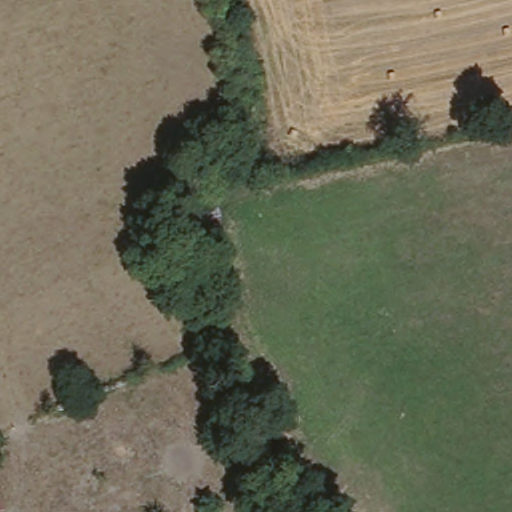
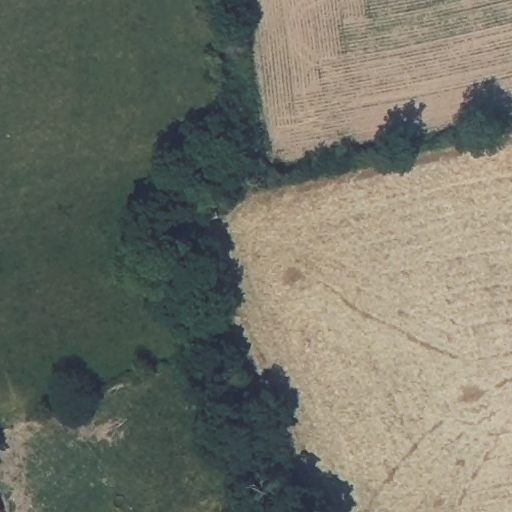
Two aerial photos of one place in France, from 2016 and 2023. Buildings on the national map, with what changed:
unchanged [(3,512),(0,512),(0,502),(3,512)]

